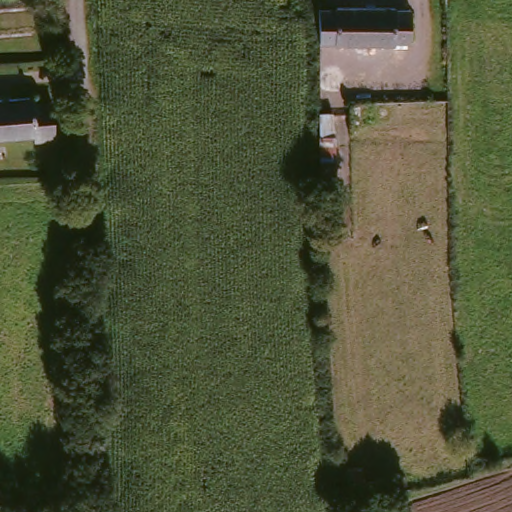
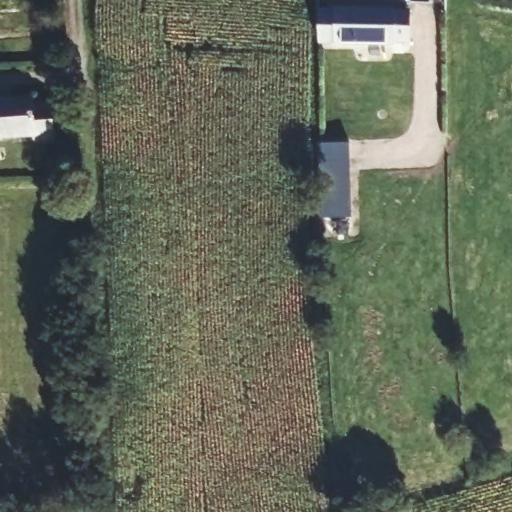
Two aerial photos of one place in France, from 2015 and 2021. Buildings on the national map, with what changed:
unchanged [(395,10),(395,16),(412,16),(412,42),(393,41),(392,45),(319,43),(319,10),(395,10)]
unchanged [(34,98),(35,105),(50,102),(51,145),(32,145),(31,138),(0,140),(0,101),(34,98)]
unchanged [(327,117),(350,116),(356,217),(333,219),(327,117)]

